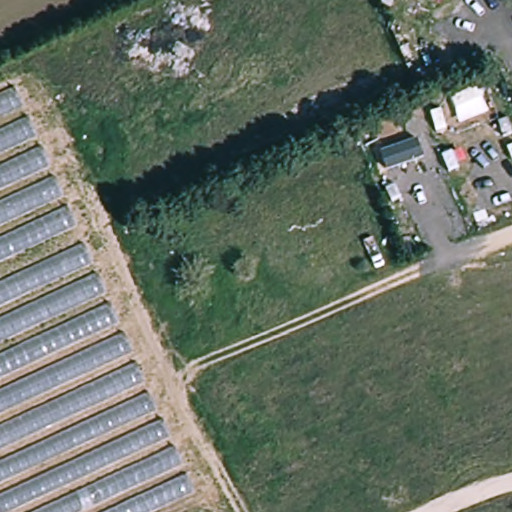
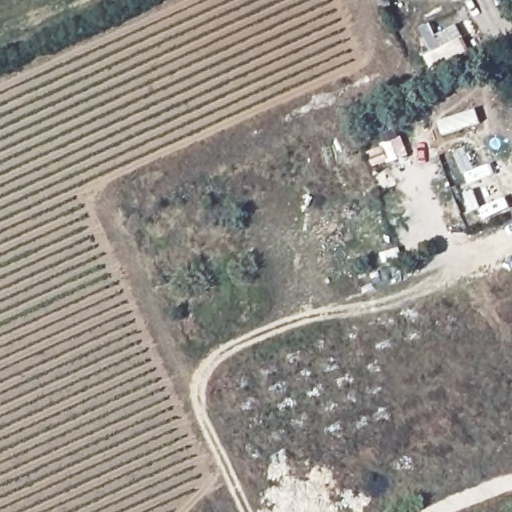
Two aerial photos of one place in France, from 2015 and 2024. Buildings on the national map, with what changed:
new [(440,37),(455,25),(471,47),(436,74),(425,58),(433,51),(419,31),(429,23),(440,37)]
demolished [(0,512),(0,89),(12,83),(195,495),(160,512),(0,512)]

